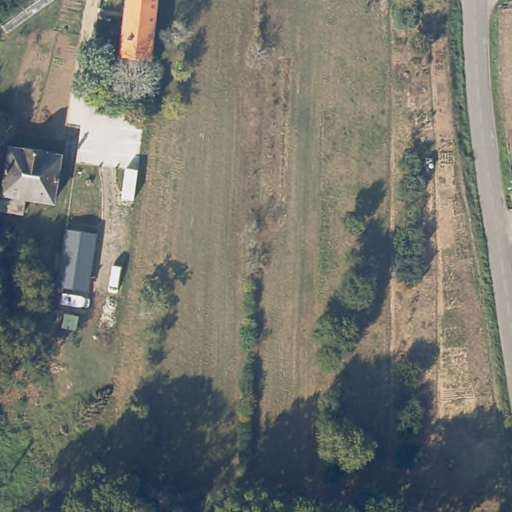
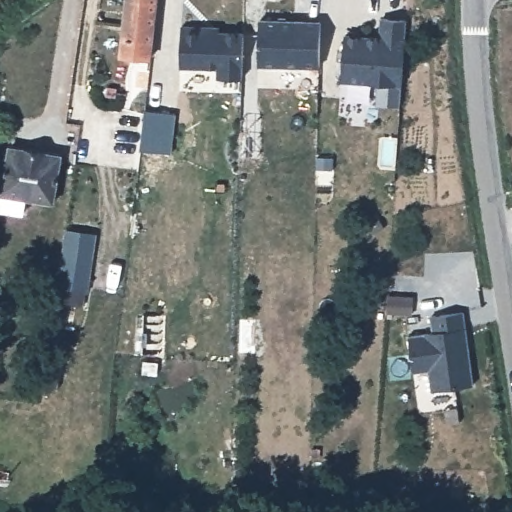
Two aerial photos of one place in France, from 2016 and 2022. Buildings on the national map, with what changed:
unchanged [(4,34),(0,29),(0,19),(30,0),(56,0),(57,3),(4,34)]
unchanged [(123,57),(129,0),(154,0),(147,60),(123,57)]
new [(375,105),(376,84),(343,81),(345,34),(380,37),(381,17),(406,19),(400,106),(375,105)]
new [(259,65),(260,19),(322,20),(320,68),(259,65)]
new [(218,77),(218,69),(180,68),(181,24),(219,25),(219,30),(245,31),(244,77),(218,77)]
unchanged [(8,149),(0,148),(0,135),(10,136),(8,149)]
unchanged [(65,160),(60,205),(31,203),(27,217),(4,213),(12,154),(65,160)]
unchanged [(90,290),(60,285),(67,233),(97,236),(90,290)]
new [(432,391),(429,370),(413,372),(408,335),(434,332),(431,315),(463,312),(473,383),(432,391)]

